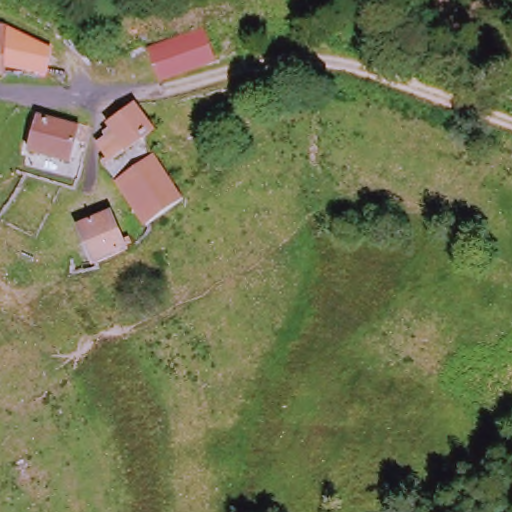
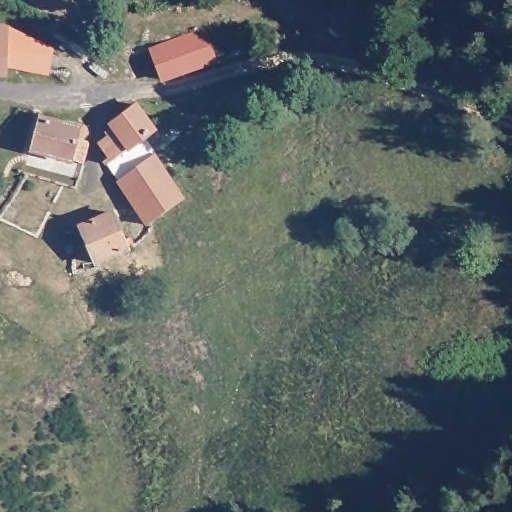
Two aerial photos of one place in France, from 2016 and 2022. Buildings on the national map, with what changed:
unchanged [(9,17),(8,60),(8,72),(0,72),(0,17),(9,17)]
unchanged [(48,50),(48,72),(39,72),(8,60),(9,17),(48,50)]
unchanged [(150,48),(203,31),(212,57),(160,73),(150,48)]
unchanged [(97,143),(110,128),(102,123),(132,100),(151,123),(110,159),(97,143)]
unchanged [(81,121),(82,116),(90,117),(86,134),(76,133),(73,155),(28,145),(36,113),(81,121)]
unchanged [(150,157),(185,199),(155,226),(120,184),(150,157)]
unchanged [(84,227),(115,214),(130,249),(98,265),(84,227)]

